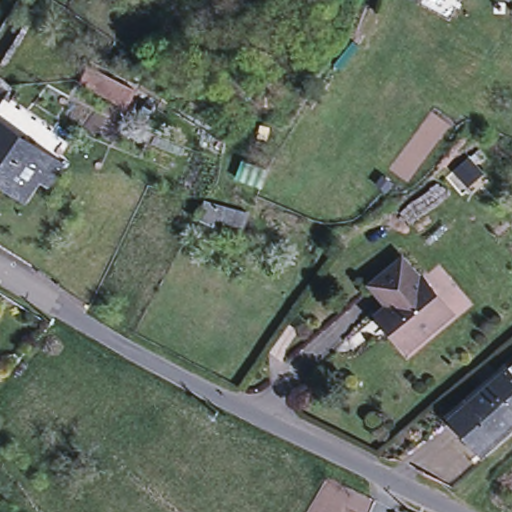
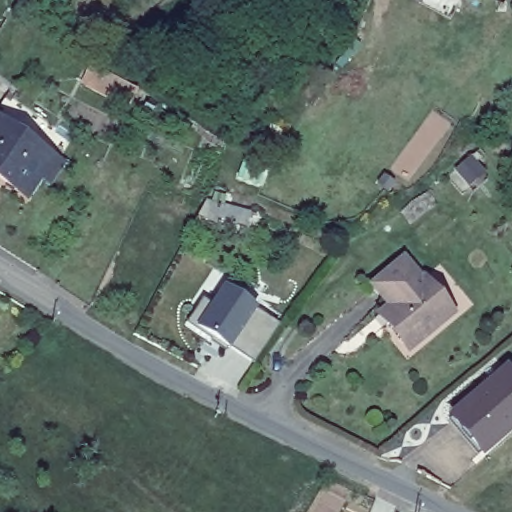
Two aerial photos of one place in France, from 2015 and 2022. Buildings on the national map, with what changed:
unchanged [(140,91),(130,109),(91,88),(100,71),(140,91)]
unchanged [(43,169),(35,162),(20,184),(0,170),(0,117),(54,154),(43,169)]
unchanged [(271,167),(262,192),(237,183),(246,157),(271,167)]
unchanged [(216,217),(214,223),(198,215),(206,200),(235,207),(248,211),(244,225),(228,221),(216,217)]
unchanged [(421,280),(423,278),(451,312),(408,348),(387,324),(398,314),(372,284),(403,258),(421,280)]
new [(255,363),(231,348),(228,352),(186,324),(202,301),(210,305),(223,286),(257,308),(280,324),(255,363)]
unchanged [(492,440),(462,406),(512,363),(512,423),(492,440)]

